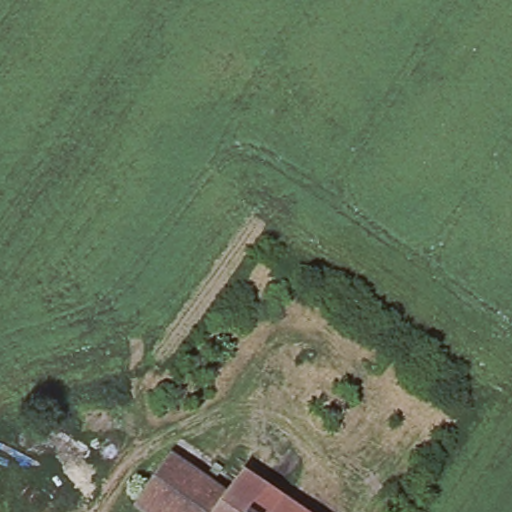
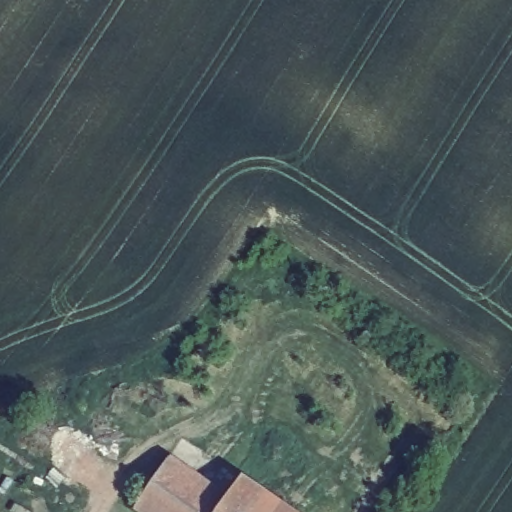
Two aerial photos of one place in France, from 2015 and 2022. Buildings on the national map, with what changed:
unchanged [(221,512),(151,512),(141,505),(177,457),(232,497),(221,512)]
unchanged [(246,478),(296,512),(221,512),(232,497),(246,478)]

